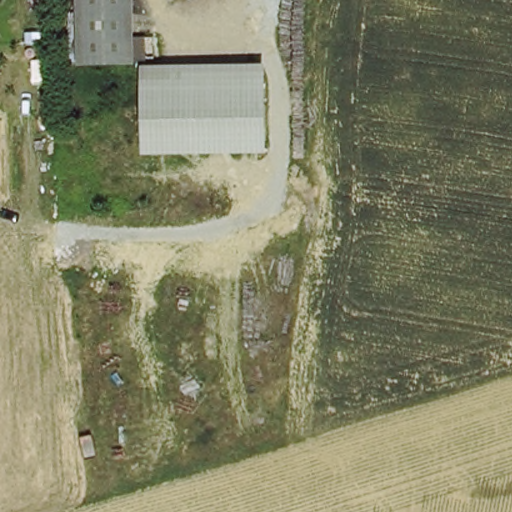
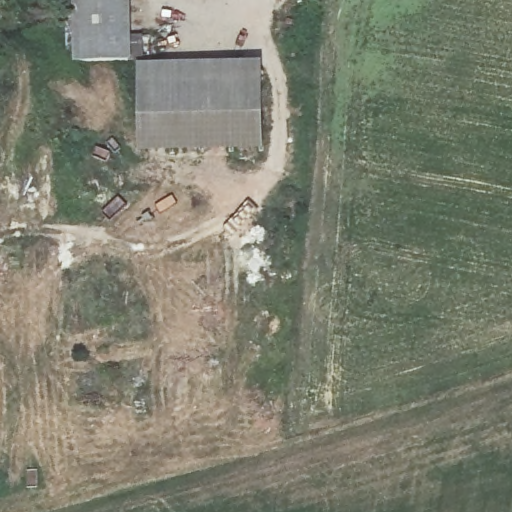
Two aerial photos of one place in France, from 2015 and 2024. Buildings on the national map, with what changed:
unchanged [(82,60),(81,0),(131,0),(133,59),(82,60)]
unchanged [(135,68),(262,65),(266,150),(140,153),(135,68)]

